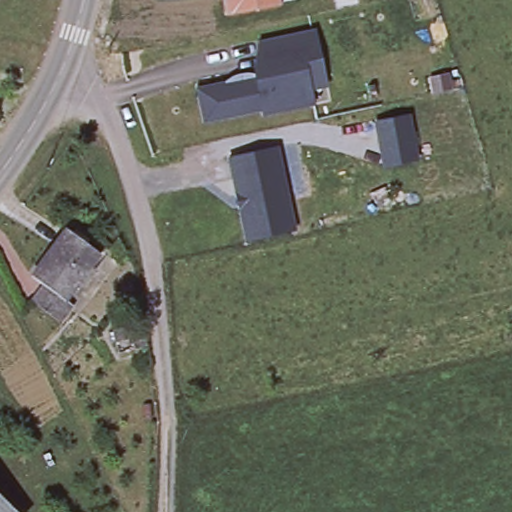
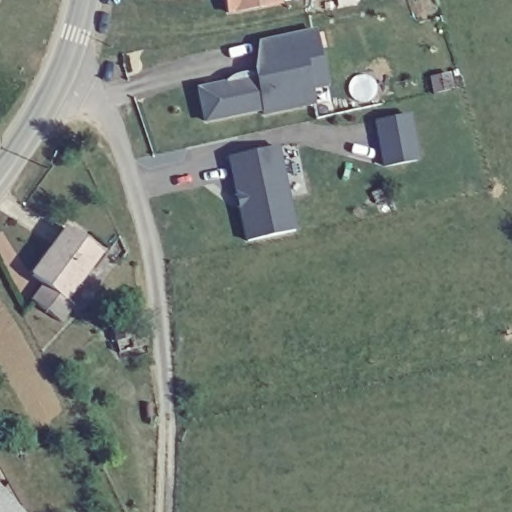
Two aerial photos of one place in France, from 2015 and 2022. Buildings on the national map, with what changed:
unchanged [(228,13),(226,0),(280,0),(280,5),(228,13)]
unchanged [(316,90),(318,105),(268,113),(268,108),(210,120),(204,88),(227,83),(232,79),(238,75),(243,72),(248,71),(256,71),(260,71),(267,75),(272,69),(267,41),(321,31),(328,68),(332,86),(316,90)]
unchanged [(375,123),(411,116),(420,160),(381,166),(375,123)]
unchanged [(277,148),(295,234),(245,245),(226,160),(277,148)]
unchanged [(57,327),(30,305),(44,289),(30,279),(52,250),(65,233),(97,256),(70,294),(63,303),(72,310),(57,327)]
unchanged [(0,494),(18,512),(0,512),(0,494)]

